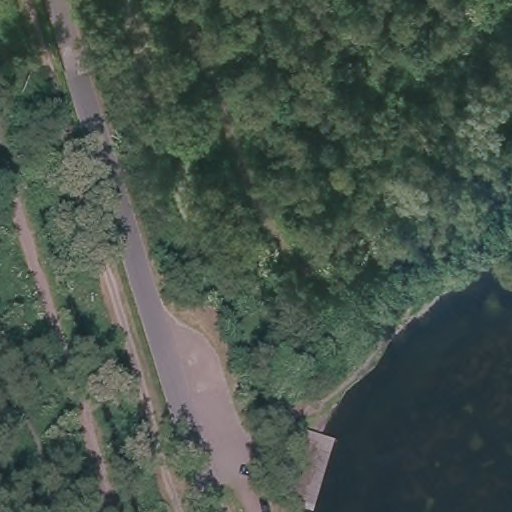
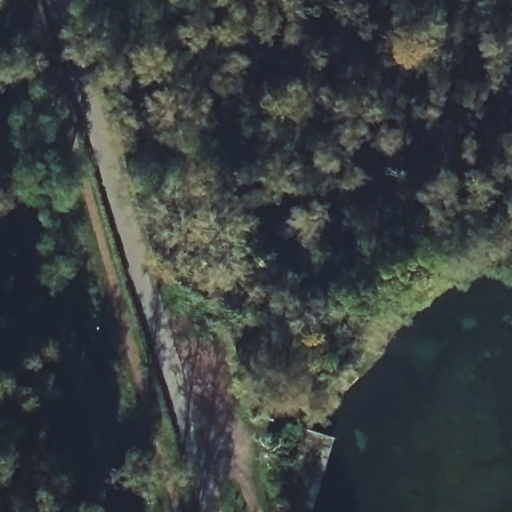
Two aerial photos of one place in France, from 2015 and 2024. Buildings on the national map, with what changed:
unchanged [(320,435),(298,504),(280,499),(302,430),(320,435)]

